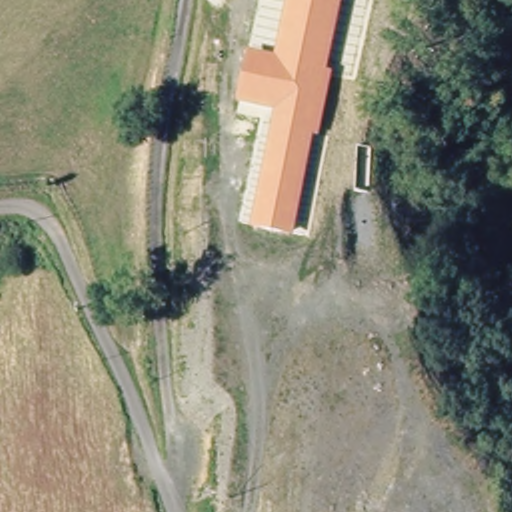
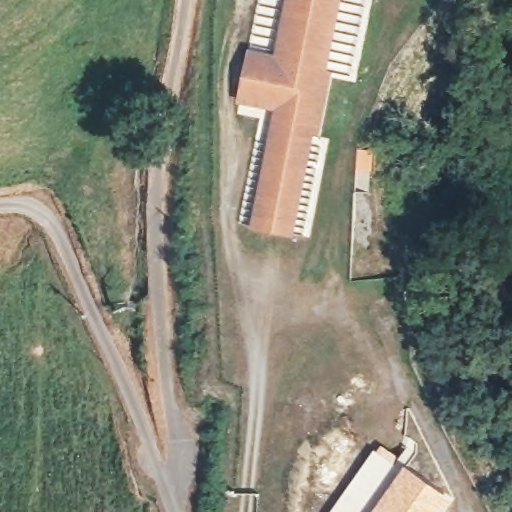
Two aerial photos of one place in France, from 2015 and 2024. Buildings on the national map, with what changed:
unchanged [(333,0),(323,51),(330,53),(317,117),(310,115),(290,213),(257,207),(282,87),(242,79),(251,36),(280,43),(289,0),(333,0)]
new [(455,498),(445,512),(331,512),(374,450),(379,453),(382,446),(410,463),(406,467),(455,498)]

